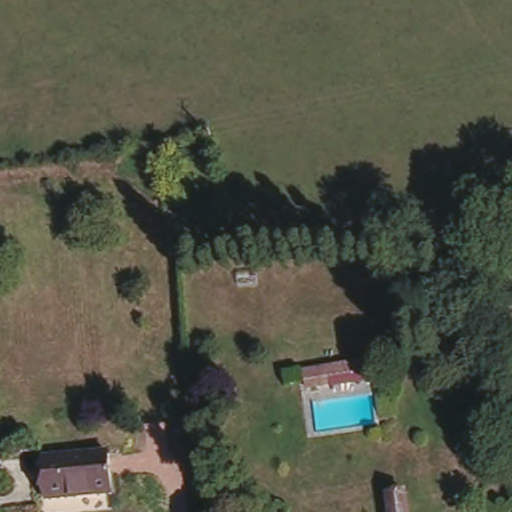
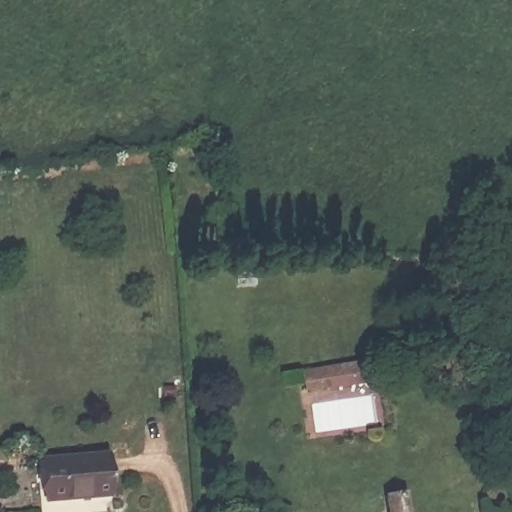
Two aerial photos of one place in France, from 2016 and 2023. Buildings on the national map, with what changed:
unchanged [(376,379),(306,389),(304,370),(370,358),(376,379)]
unchanged [(41,453),(106,449),(110,494),(46,497),(41,453)]
unchanged [(404,492),(406,512),(387,512),(385,495),(404,492)]

